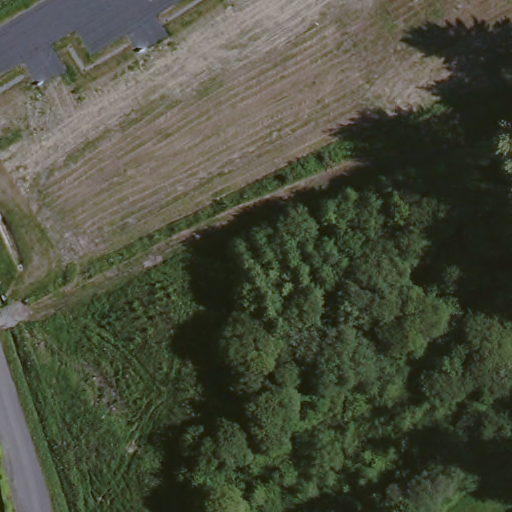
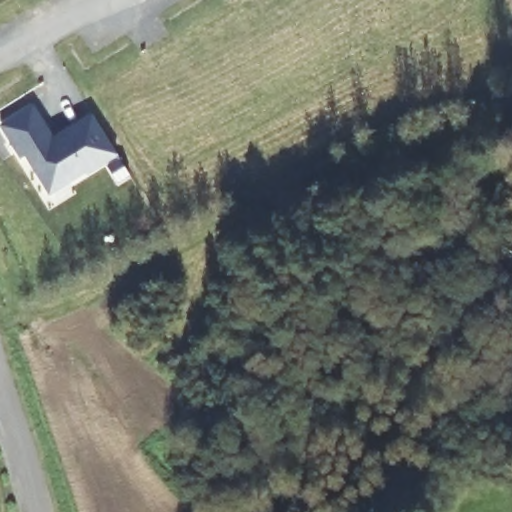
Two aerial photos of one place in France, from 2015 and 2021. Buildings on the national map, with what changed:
new [(20,157),(0,125),(0,124),(34,104),(52,135),(91,113),(117,155),(49,195),(24,154),(20,157)]

